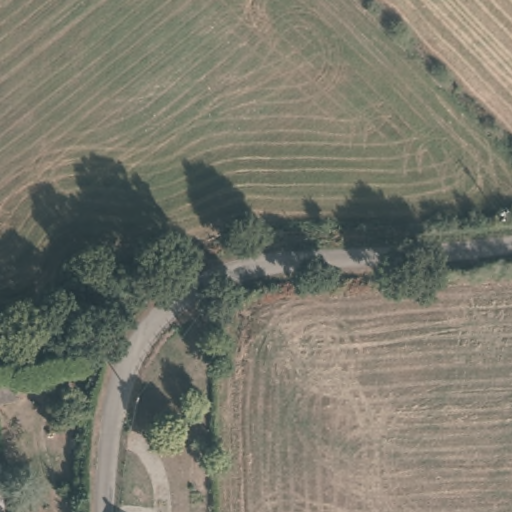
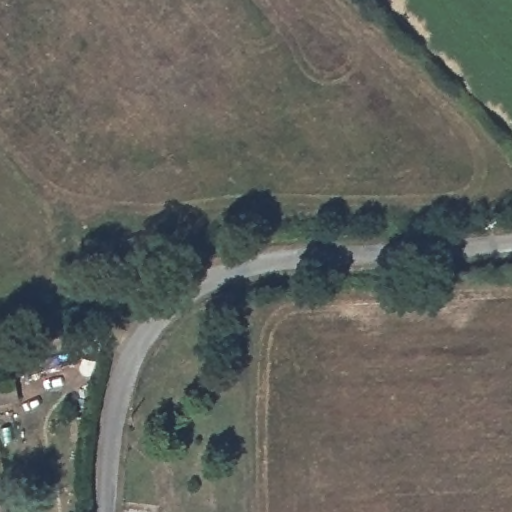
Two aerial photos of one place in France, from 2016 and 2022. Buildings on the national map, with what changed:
unchanged [(16,402),(0,403),(0,383),(16,382),(16,402)]
unchanged [(4,503),(10,502),(12,512),(0,512),(0,488),(1,488),(4,503)]

